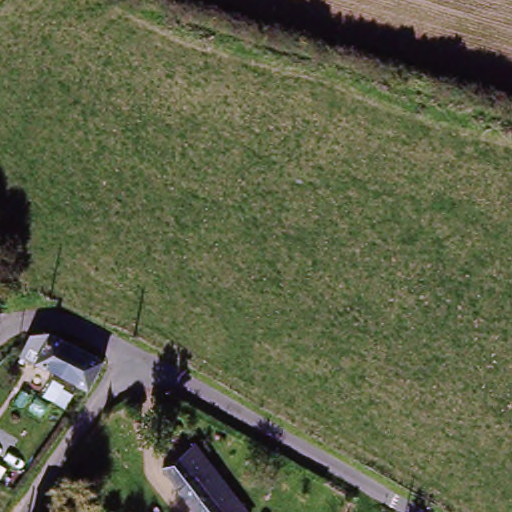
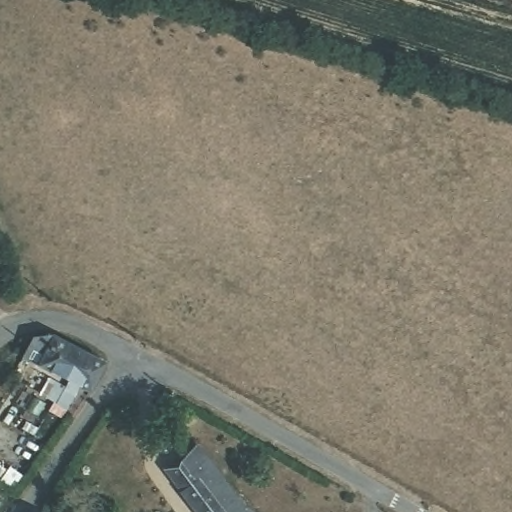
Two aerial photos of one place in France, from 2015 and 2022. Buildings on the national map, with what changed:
unchanged [(106,366),(85,399),(25,366),(36,340),(44,338),(106,366)]
unchanged [(248,512),(195,512),(163,472),(196,446),(248,512)]

